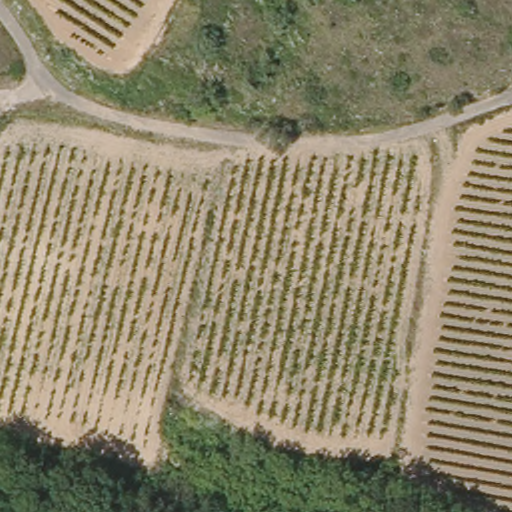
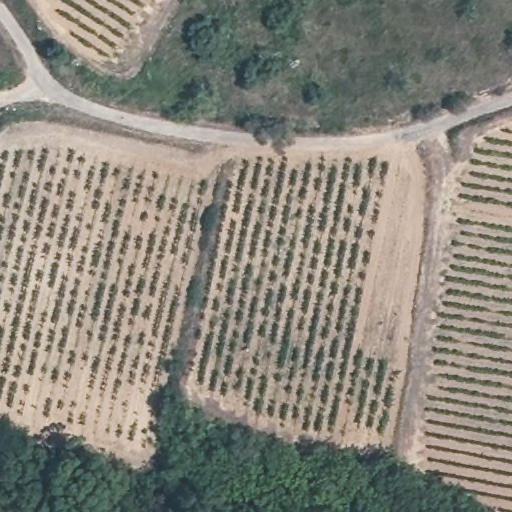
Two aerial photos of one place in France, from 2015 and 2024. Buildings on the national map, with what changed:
[]

